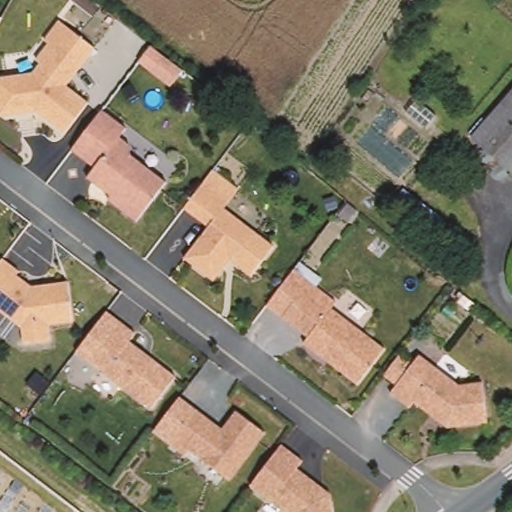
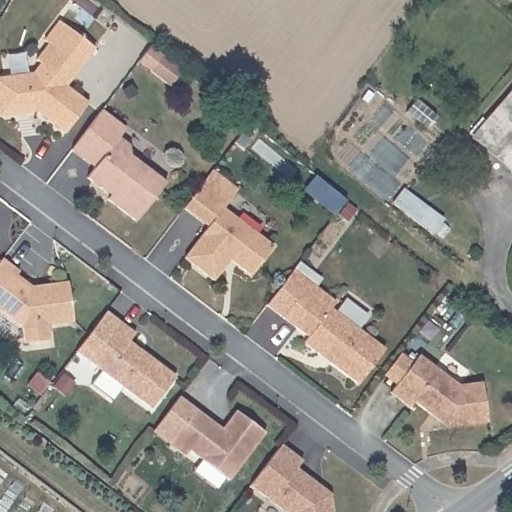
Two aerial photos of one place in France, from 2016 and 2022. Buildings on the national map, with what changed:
unchanged [(33,69),(41,59),(36,56),(49,40),(44,36),(59,17),(95,44),(66,82),(89,99),(65,129),(36,107),(6,112),(0,112),(0,73),(4,73),(33,69)]
unchanged [(162,49),(184,66),(169,83),(148,67),(162,49)]
unchanged [(475,137),(512,93),(512,167),(475,137)]
unchanged [(126,129),(119,138),(129,146),(130,156),(166,183),(136,222),(108,200),(110,196),(87,178),(95,168),(71,151),(99,115),(102,111),(126,129)]
unchanged [(229,197),(224,204),(273,242),(251,271),(229,255),(213,276),(184,254),(208,222),(184,204),(197,187),(204,177),(229,197)]
unchanged [(16,271),(31,282),(68,277),(73,317),(48,321),(49,336),(24,338),(22,322),(0,306),(0,257),(2,254),(19,267),(16,271)]
unchanged [(312,277),(338,297),(332,304),(384,345),(357,380),(303,338),(308,330),(284,312),(312,277)]
unchanged [(135,330),(129,337),(175,372),(151,405),(88,357),(119,317),(135,330)]
unchanged [(457,383),(481,380),(486,418),(447,423),(413,397),(409,403),(389,388),(396,381),(383,371),(387,366),(399,349),(412,358),(417,352),(457,383)]
unchanged [(222,426),(236,407),(264,428),(229,476),(189,446),(184,452),(169,440),(173,433),(195,405),(222,426)]
unchanged [(305,457),(301,462),(333,488),(335,512),(292,512),(250,482),(283,438),(305,457)]

